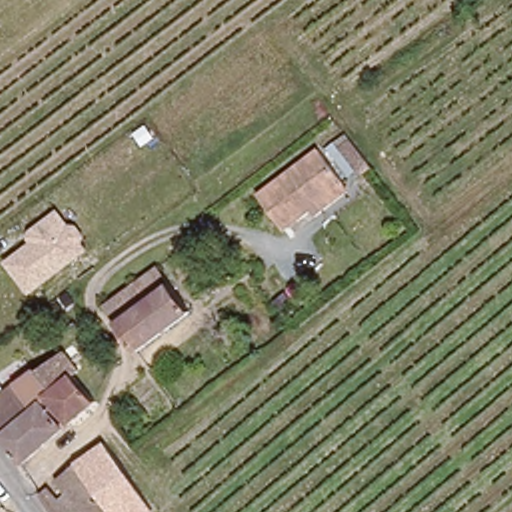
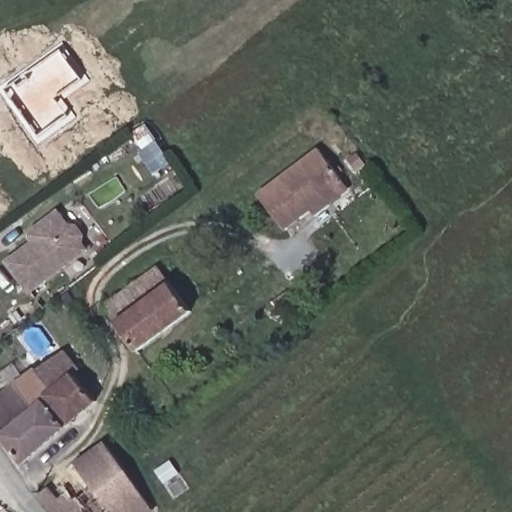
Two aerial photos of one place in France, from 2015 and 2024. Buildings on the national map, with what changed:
new [(62,48),(85,78),(57,99),(69,115),(40,136),(6,89),(62,48)]
unchanged [(276,231),(252,197),(312,152),(337,185),(342,192),(308,216),(303,210),(276,231)]
unchanged [(30,294),(6,262),(31,242),(30,230),(58,210),(70,222),(80,224),(87,235),(85,241),(89,250),(30,294)]
unchanged [(132,351),(99,307),(154,266),(186,309),(132,351)]
unchanged [(98,337),(90,343),(94,350),(84,358),(91,369),(80,378),(94,395),(68,417),(19,458),(0,435),(0,391),(10,384),(31,367),(89,324),(98,337)]
unchanged [(37,486),(41,489),(45,491),(49,493),(53,493),(59,493),(49,479),(49,478),(70,463),(99,442),(110,458),(120,472),(146,509),(142,512),(44,512),(29,492),(37,486)]

